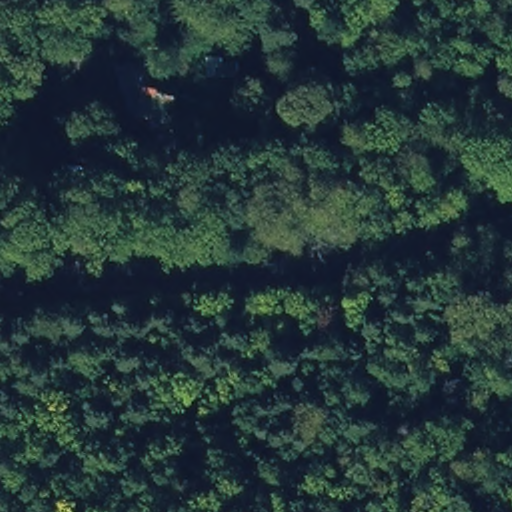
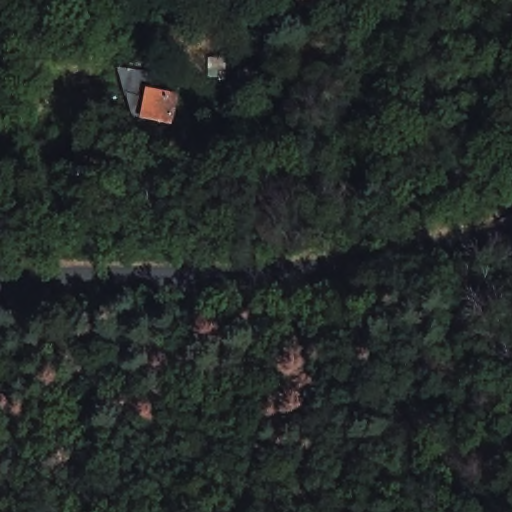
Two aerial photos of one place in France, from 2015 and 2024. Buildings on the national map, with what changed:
unchanged [(173,124),(132,118),(122,70),(154,73),(152,90),(178,95),(173,124)]

